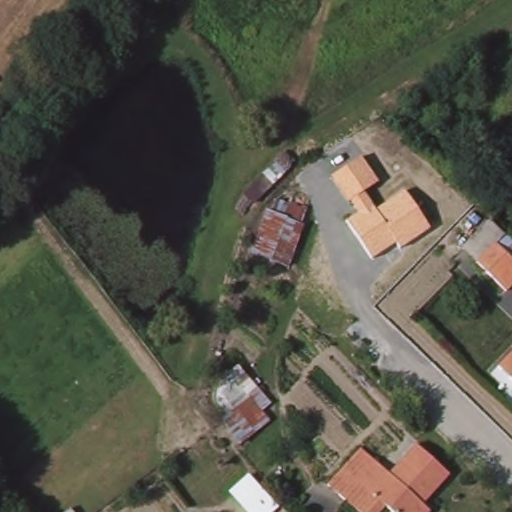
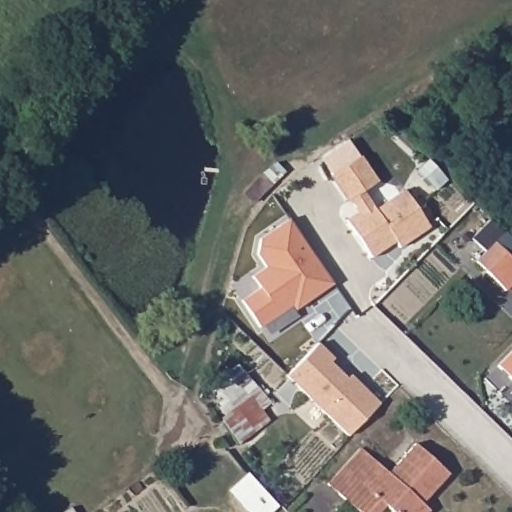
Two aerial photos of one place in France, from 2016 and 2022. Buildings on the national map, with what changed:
unchanged [(29,145),(42,152),(35,162),(45,169),(34,188),(12,175),(29,145)]
unchanged [(399,249),(394,242),(371,257),(347,220),(357,215),(332,177),(360,157),(378,182),(363,192),(375,211),(404,192),(429,229),(399,249)]
new [(334,285),(296,311),(293,306),(259,328),(240,300),(259,287),(251,276),(264,267),(256,255),(260,237),(289,218),(334,285)]
unchanged [(477,266),(495,248),(506,237),(512,243),(512,288),(506,294),(477,266)]
demolished [(317,310),(298,292),(309,270),(333,292),(317,310)]
new [(336,358),(333,361),(349,378),(352,375),(362,385),(380,404),(349,436),(290,374),(321,342),(336,358)]
unchanged [(512,357),(512,383),(498,370),(512,357)]
unchanged [(257,396),(254,392),(263,386),(276,402),(267,410),(274,420),(240,447),(222,426),(220,424),(257,396)]
unchanged [(408,487),(434,457),(467,487),(445,512),(366,512),(347,495),(380,462),(408,487)]
unchanged [(287,504),(277,512),(258,512),(246,498),(267,481),(287,504)]

